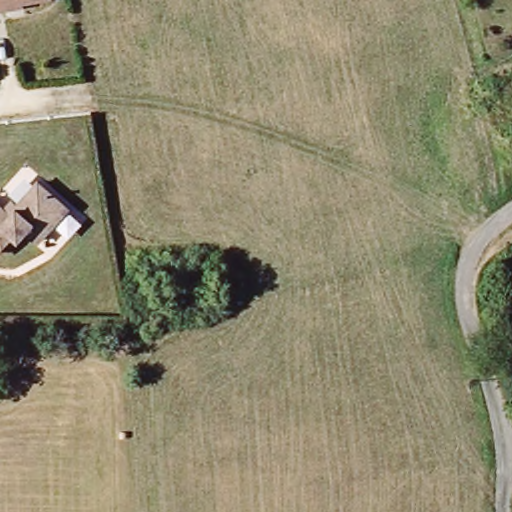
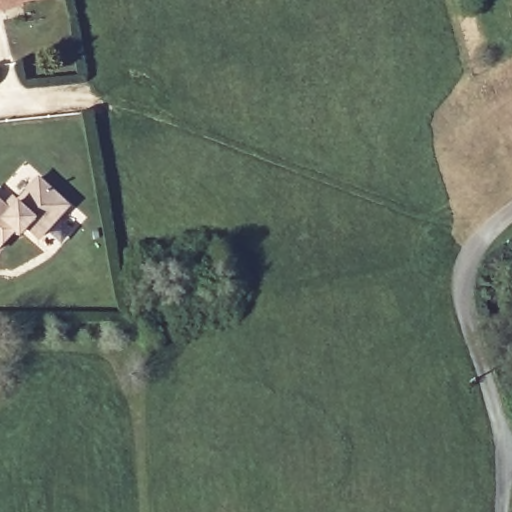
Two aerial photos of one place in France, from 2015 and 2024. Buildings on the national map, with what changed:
unchanged [(5,5),(5,9),(0,10),(0,0),(32,0),(5,5)]
unchanged [(64,211),(34,244),(21,232),(14,240),(9,236),(0,246),(0,210),(1,211),(9,203),(13,207),(34,184),(64,211)]

